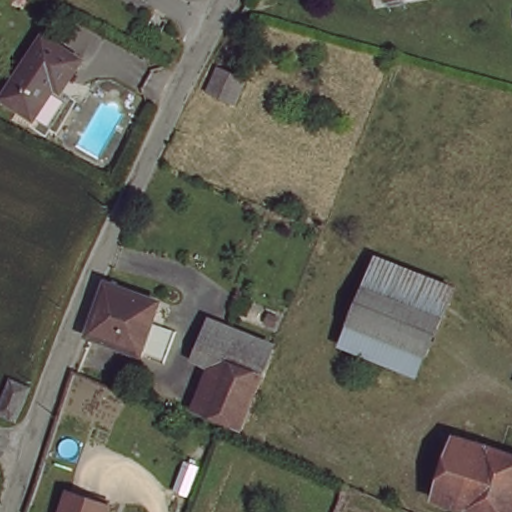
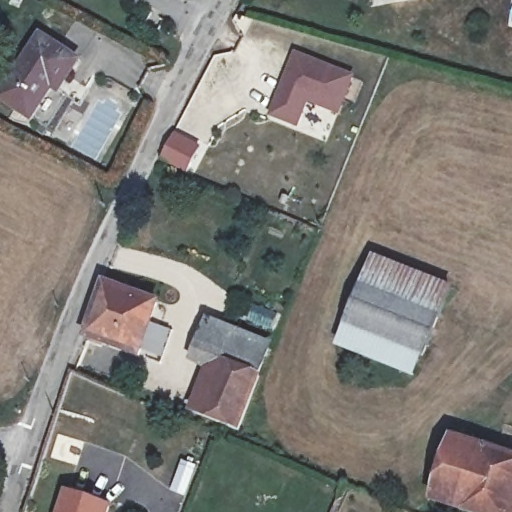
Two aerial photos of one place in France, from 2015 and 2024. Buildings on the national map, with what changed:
unchanged [(44,116),(4,92),(40,33),(80,57),(44,116)]
new [(339,116),(306,104),(297,130),(267,117),(293,53),(354,76),(339,116)]
demolished [(232,104),(204,92),(215,67),(243,79),(232,104)]
new [(199,148),(188,173),(160,161),(170,136),(199,148)]
unchanged [(375,257),(450,288),(437,318),(362,288),(375,257)]
unchanged [(80,332),(105,272),(165,299),(140,357),(80,332)]
unchanged [(437,318),(423,353),(422,355),(347,326),(362,288),(437,318)]
unchanged [(214,357),(212,360),(192,350),(207,322),(208,323),(269,348),(259,375),(214,357)]
unchanged [(422,355),(413,376),(340,346),(347,326),(422,355)]
unchanged [(203,382),(201,381),(205,370),(212,360),(214,357),(259,375),(237,429),(201,415),(192,411),(203,382)]
unchanged [(22,391),(10,420),(0,415),(0,407),(10,386),(22,391)]
unchanged [(471,512),(431,500),(452,437),(496,452),(512,456),(512,512),(471,512)]
unchanged [(109,512),(62,512),(69,492),(110,507),(109,512)]

